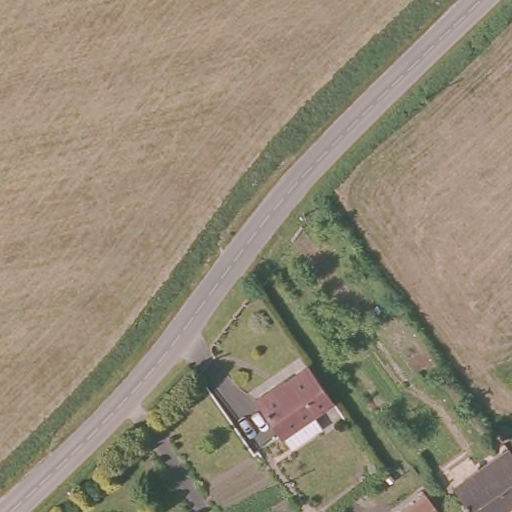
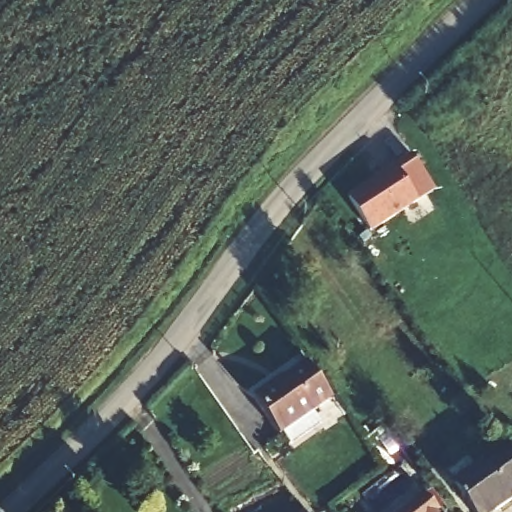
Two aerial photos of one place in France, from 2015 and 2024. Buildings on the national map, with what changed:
new [(371,234),(348,197),(412,154),(437,193),(371,234)]
unchanged [(277,385),(279,388),(310,368),(332,401),(315,413),(325,427),(293,448),(258,398),(277,385)]
unchanged [(510,448),(512,451),(512,503),(500,512),(478,512),(458,486),(510,448)]
unchanged [(445,512),(409,512),(431,495),(445,512)]

